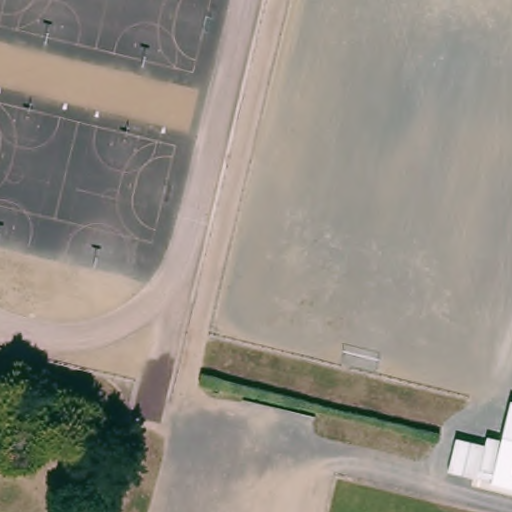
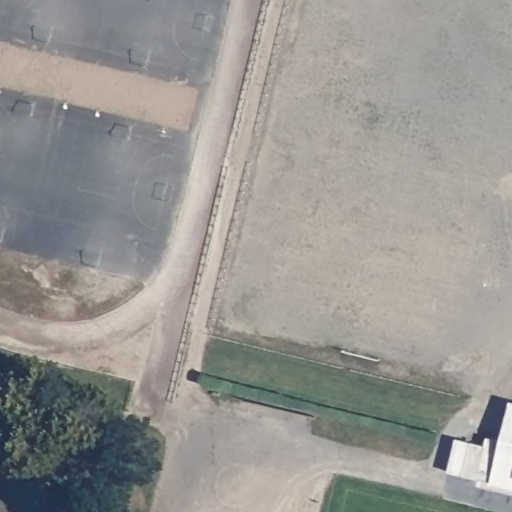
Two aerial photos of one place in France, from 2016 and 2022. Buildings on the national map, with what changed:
unchanged [(493,483),(494,479),(503,443),(504,441),(506,430),(512,411),(512,488),(493,483)]
unchanged [(487,446),(490,437),(504,441),(503,443),(494,479),(480,475),(478,479),(450,472),(458,439),(487,446)]

